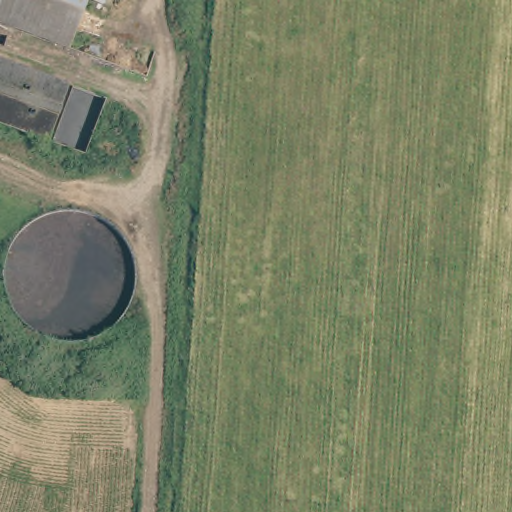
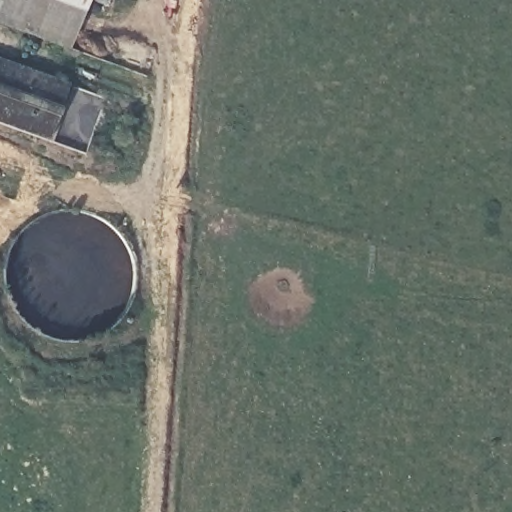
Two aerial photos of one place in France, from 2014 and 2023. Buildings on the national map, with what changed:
unchanged [(0,6),(0,0),(86,0),(71,33),(0,6)]
unchanged [(97,0),(104,0),(104,2),(97,0)]
unchanged [(0,22),(0,6),(71,33),(65,46),(0,22)]
unchanged [(53,135),(0,115),(0,52),(75,80),(53,135)]

